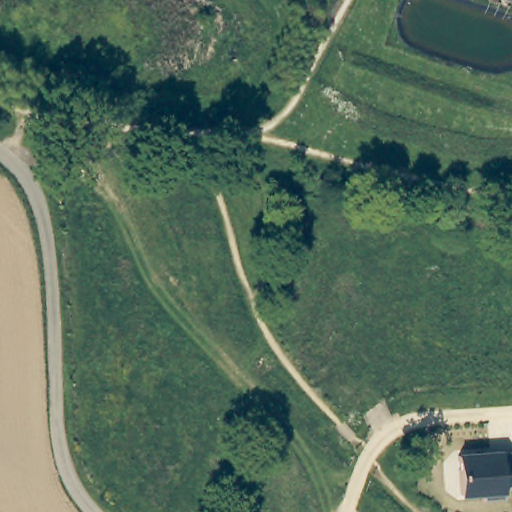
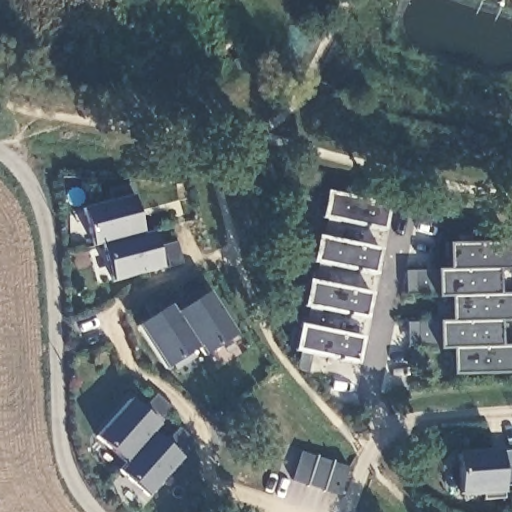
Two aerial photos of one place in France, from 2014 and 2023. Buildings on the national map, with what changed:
new [(102,244),(93,247),(83,206),(112,200),(111,189),(131,184),(143,232),(154,229),(158,245),(177,241),(182,263),(111,281),(102,244)]
new [(296,351),(328,192),(388,205),(383,228),(337,220),(333,240),(380,249),(375,273),(328,263),(324,284),(371,294),(366,318),(319,308),(314,328),(363,338),(357,362),(310,353),(308,373),(300,371),(296,366),(296,351)]
new [(452,322),(452,297),(439,297),(439,295),(405,294),(406,270),(451,271),(449,244),(512,243),(512,268),(500,269),(500,294),(512,293),(512,321),(500,321),(501,346),(512,345),(512,372),(454,374),(453,348),(439,349),(439,346),(408,346),(407,322),(452,322)]
new [(150,315),(143,301),(160,288),(177,312),(187,305),(178,288),(198,274),(236,335),(205,357),(199,348),(166,370),(136,325),(150,315)]
new [(119,471),(125,462),(95,437),(131,397),(142,407),(157,393),(173,409),(152,432),(165,442),(179,427),(196,443),(148,498),(119,471)]
unchanged [(512,450),(512,486),(503,487),(505,498),(483,499),(483,494),(457,494),(456,454),(500,451),(512,450)]
new [(301,451),(349,466),(340,494),(291,480),(301,451)]

